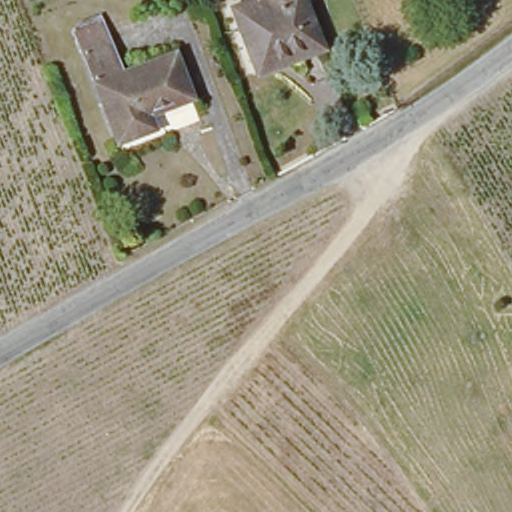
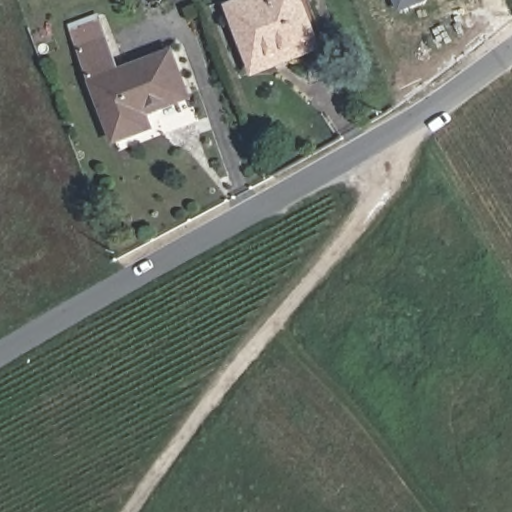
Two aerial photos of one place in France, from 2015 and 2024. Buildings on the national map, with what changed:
unchanged [(277,64),(255,72),(230,7),(247,0),(301,0),(316,42),(319,49),(277,64)]
new [(430,3),(401,14),(396,0),(429,0),(430,3)]
unchanged [(70,34),(95,23),(114,71),(168,51),(184,95),(141,112),(146,127),(110,141),(70,34)]

